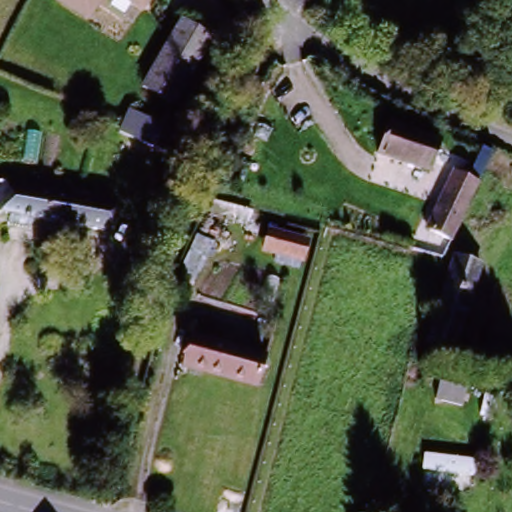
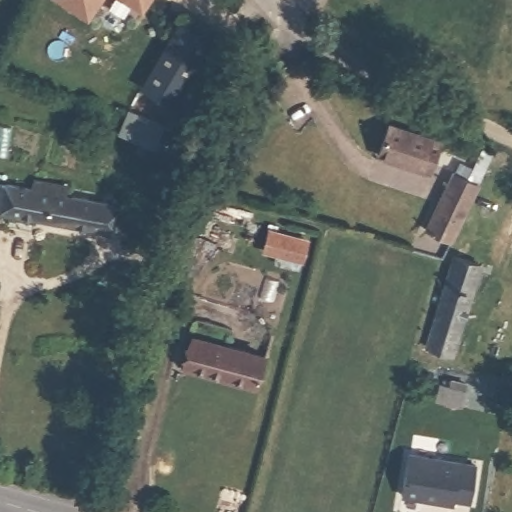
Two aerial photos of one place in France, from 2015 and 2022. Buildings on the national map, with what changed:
unchanged [(49,0),(104,0),(88,22),(49,0)]
unchanged [(112,0),(152,0),(141,16),(112,0)]
unchanged [(209,42),(179,110),(146,97),(177,28),(209,42)]
unchanged [(131,106),(176,127),(166,148),(121,128),(131,106)]
unchanged [(438,146),(427,174),(373,151),(385,124),(438,146)]
unchanged [(450,174),(466,181),(476,157),(486,162),(494,167),(484,190),(475,186),(449,245),(424,230),(450,174)]
unchanged [(33,179),(72,185),(71,197),(114,202),(110,232),(0,217),(0,186),(31,191),(33,179)]
unchanged [(306,241),(301,261),(262,249),(268,229),(306,241)]
unchanged [(486,265),(457,356),(424,347),(451,255),(486,265)]
unchanged [(257,357),(249,383),(178,363),(187,336),(257,357)]
unchanged [(448,379),(450,372),(466,376),(459,398),(429,391),(434,375),(448,379)]
new [(478,464),(471,503),(454,501),(454,506),(402,496),(409,453),(478,464)]

